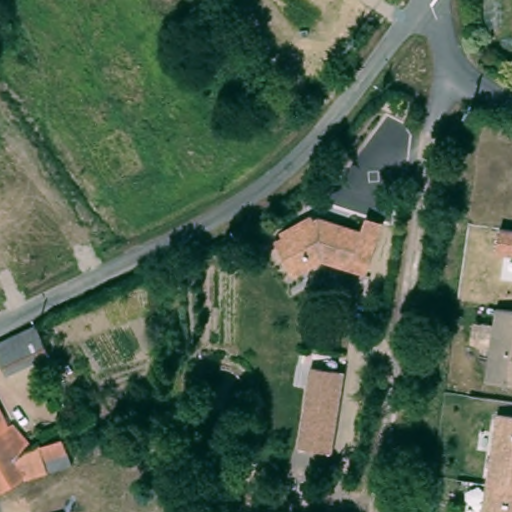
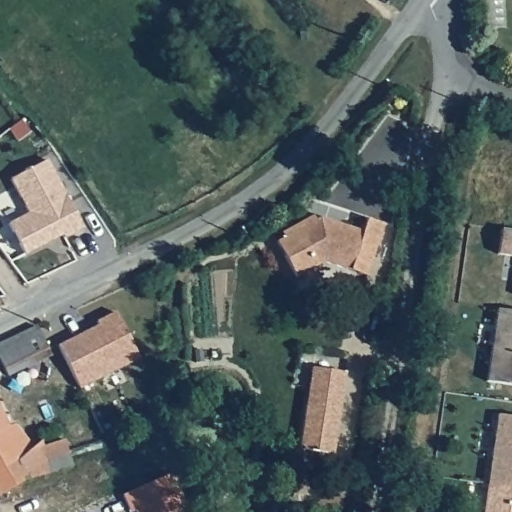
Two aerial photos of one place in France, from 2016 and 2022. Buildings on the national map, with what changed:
new [(26,255),(10,224),(30,213),(11,179),(48,160),(84,229),(65,239),(63,235),(46,244),(26,255)]
unchanged [(357,259),(329,250),(301,265),(282,230),(290,226),(287,221),(318,204),(321,209),(325,206),(342,212),(368,220),(372,207),(389,212),(376,250),(372,264),(357,259)]
unchanged [(498,253),(501,229),(512,231),(512,256),(498,253)]
unchanged [(495,308),(512,311),(512,383),(486,379),(495,308)]
new [(85,331),(99,324),(97,320),(115,311),(139,357),(80,387),(58,344),(74,336),(85,331)]
unchanged [(13,378),(0,350),(0,349),(43,329),(53,351),(56,357),(40,365),(13,378)]
unchanged [(311,366),(344,372),(332,453),(298,447),(311,366)]
unchanged [(42,443),(44,448),(65,441),(74,467),(28,481),(26,479),(24,483),(0,497),(0,408),(11,428),(15,426),(35,449),(42,443)]
unchanged [(512,416),(512,512),(482,512),(497,414),(512,416)]
new [(189,512),(137,512),(136,509),(131,511),(124,493),(171,472),(189,512)]

